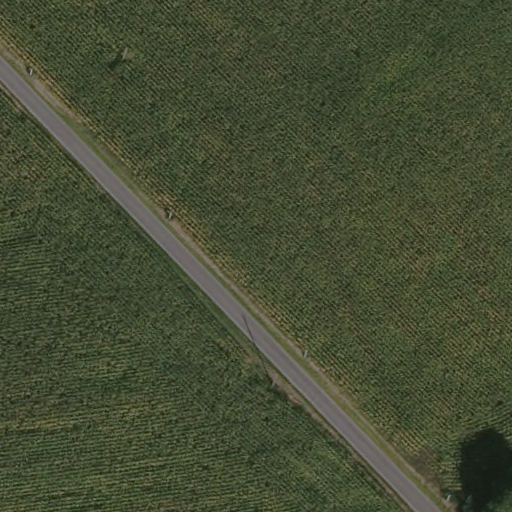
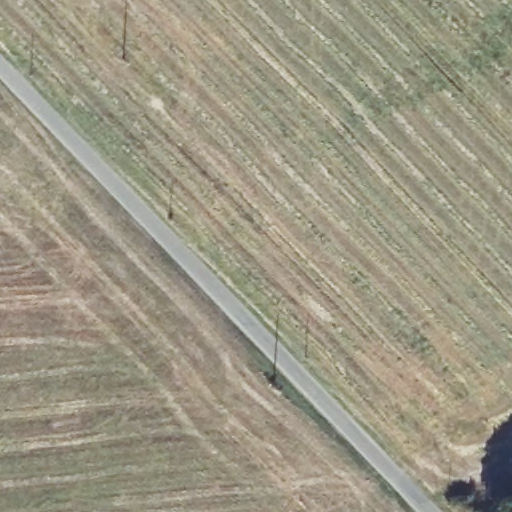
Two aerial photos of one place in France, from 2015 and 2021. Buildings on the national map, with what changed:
[]

